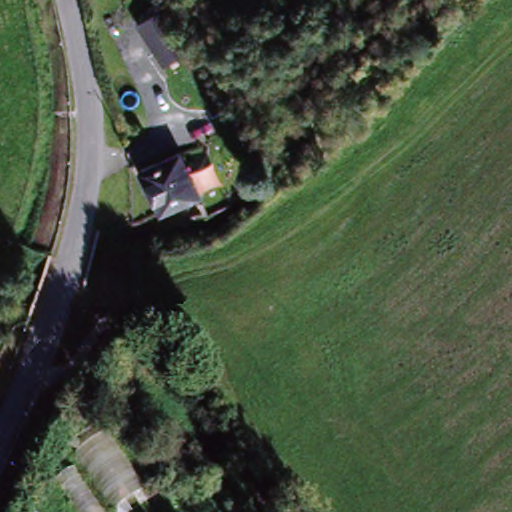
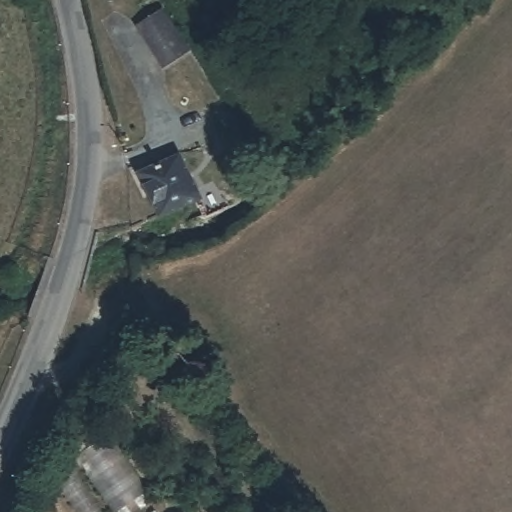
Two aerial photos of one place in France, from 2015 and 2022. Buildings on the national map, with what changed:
unchanged [(164,14),(186,56),(163,69),(141,25),(164,14)]
unchanged [(141,177),(176,160),(198,201),(161,220),(141,177)]
unchanged [(198,457),(125,377),(156,348),(226,434),(198,457)]
unchanged [(98,413),(158,497),(139,512),(125,512),(68,436),(98,413)]
unchanged [(188,492),(201,512),(159,512),(188,492)]

